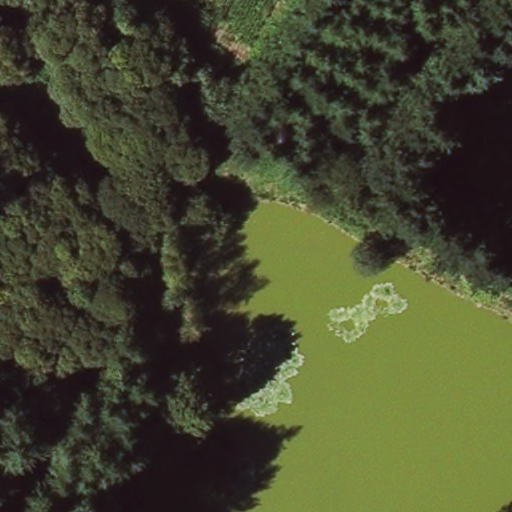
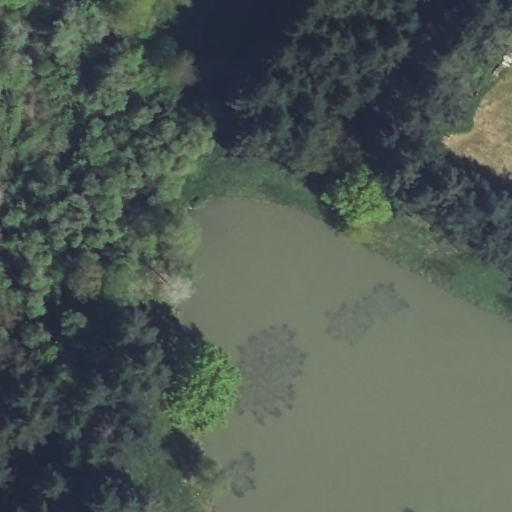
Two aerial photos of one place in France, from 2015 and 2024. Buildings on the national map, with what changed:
[]

